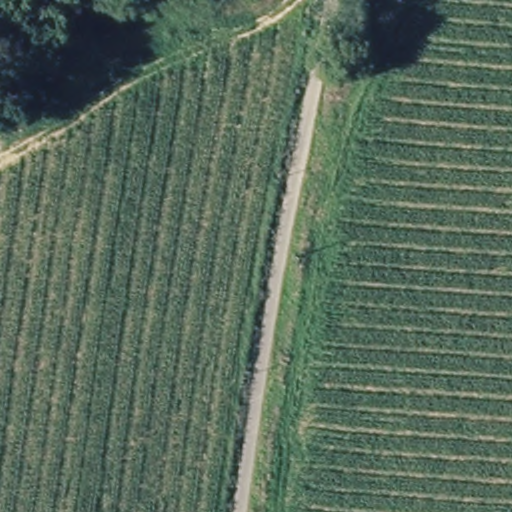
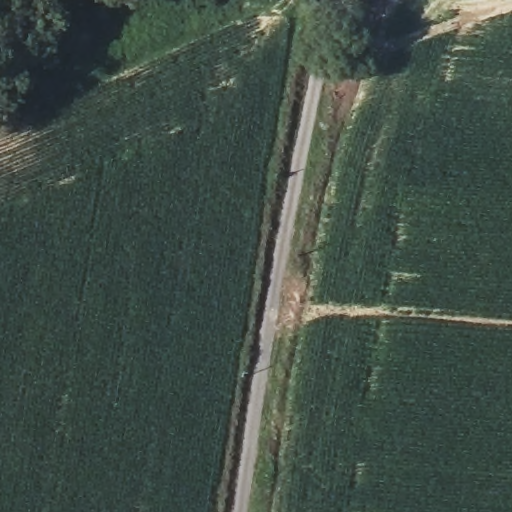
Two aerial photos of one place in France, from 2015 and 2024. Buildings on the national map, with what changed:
[]

